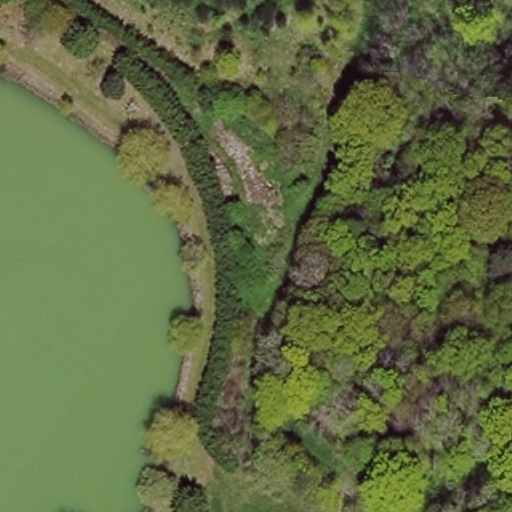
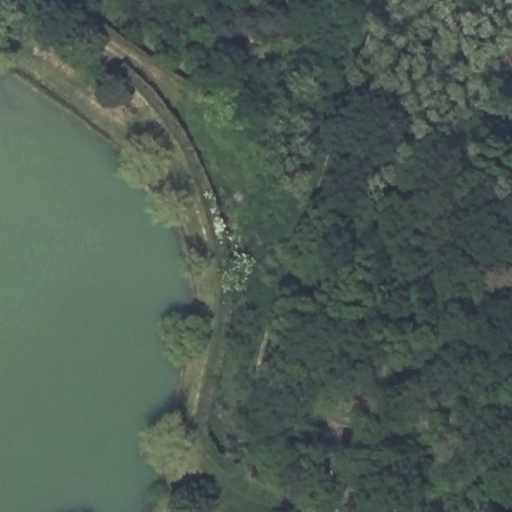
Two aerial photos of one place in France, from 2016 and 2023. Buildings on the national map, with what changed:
[]

